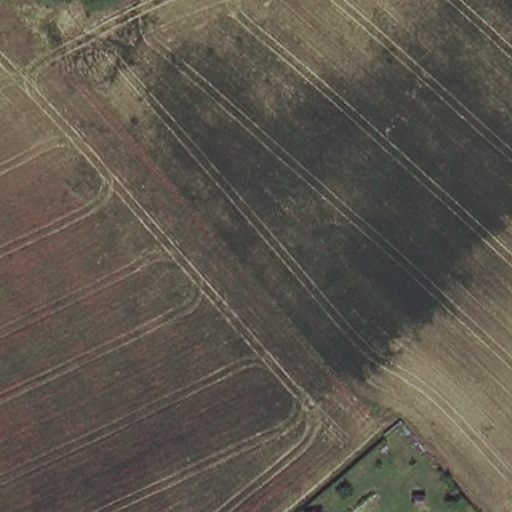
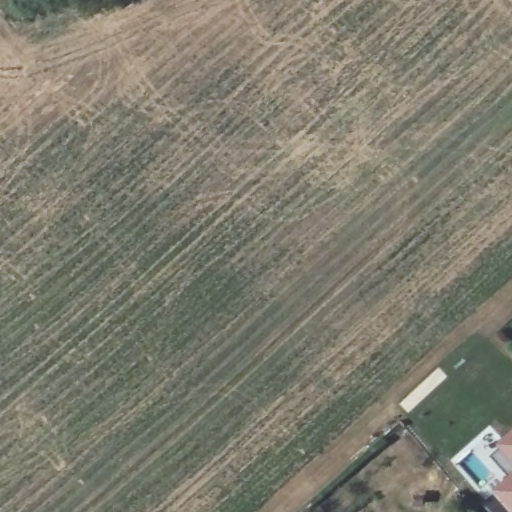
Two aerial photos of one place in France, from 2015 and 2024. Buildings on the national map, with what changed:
new [(512,428),(512,466),(495,444),(512,428)]
new [(490,489),(512,468),(512,512),(510,512),(490,489)]

